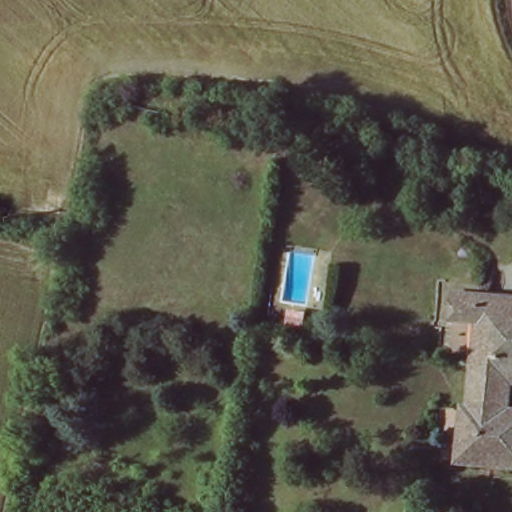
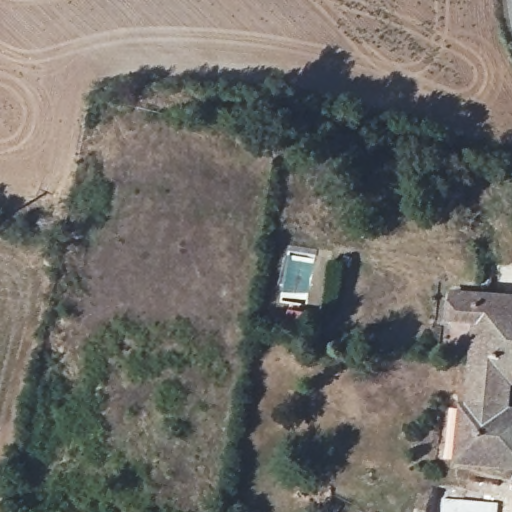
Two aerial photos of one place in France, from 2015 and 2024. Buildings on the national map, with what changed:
unchanged [(481,182),(500,178),(508,209),(488,213),(481,182)]
unchanged [(448,319),(452,289),(512,297),(512,363),(477,358),(482,325),(448,319)]
unchanged [(512,363),(512,384),(508,384),(504,415),(512,417),(512,469),(463,463),(471,416),(460,414),(469,357),(477,358),(512,363)]
new [(498,501),(497,512),(438,512),(440,496),(498,501)]

